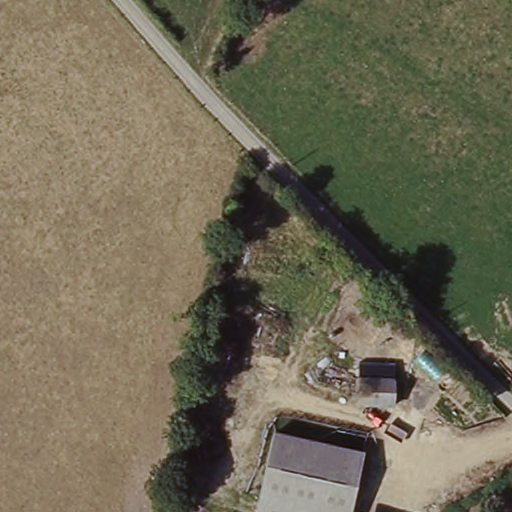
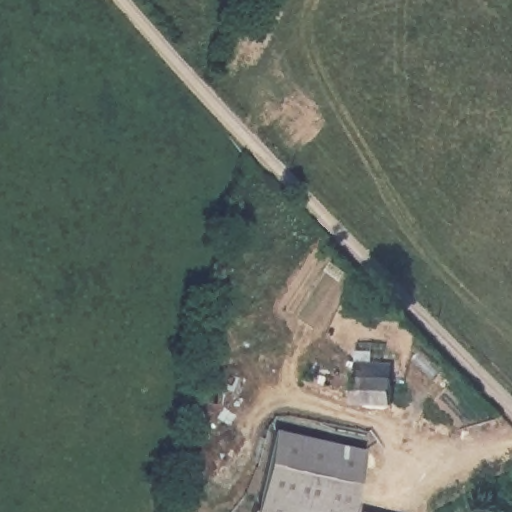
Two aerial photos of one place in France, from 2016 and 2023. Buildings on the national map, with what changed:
unchanged [(395,379),(394,406),(358,404),(358,379),(395,379)]
unchanged [(354,512),(259,512),(277,438),(366,458),(354,512)]

